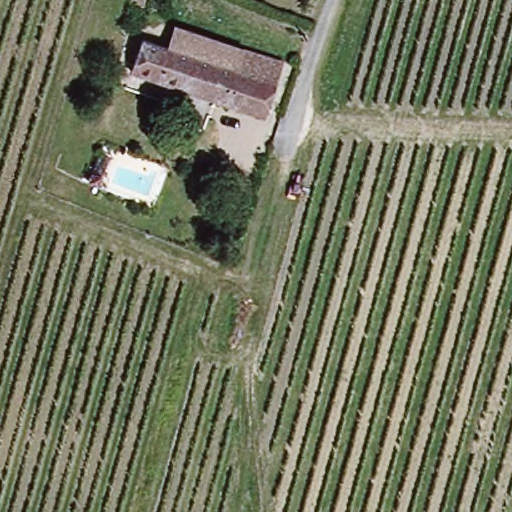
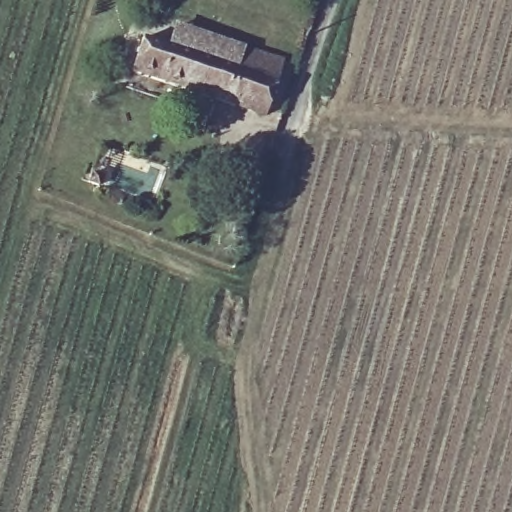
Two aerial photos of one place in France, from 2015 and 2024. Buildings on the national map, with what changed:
unchanged [(168,44),(173,26),(237,48),(233,66),(168,44)]
unchanged [(237,48),(279,62),(262,117),(129,74),(139,43),(165,52),(168,44),(233,66),(237,48)]

